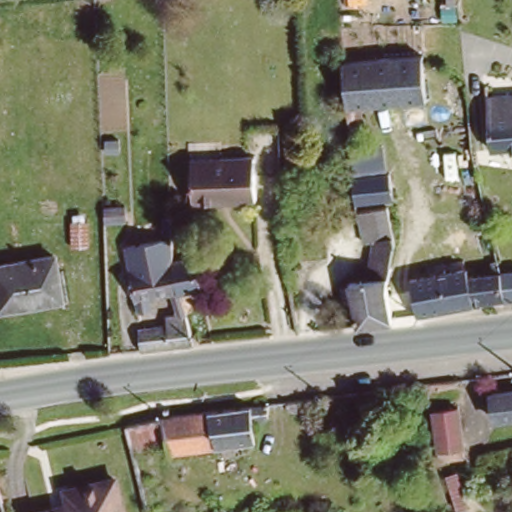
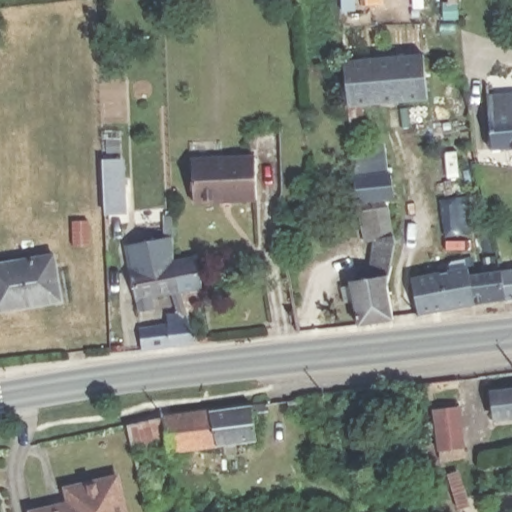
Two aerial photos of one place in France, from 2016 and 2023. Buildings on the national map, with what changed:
unchanged [(347,62),(416,53),(418,53),(420,72),(423,97),(358,105),(359,115),(345,117),(345,112),(339,63),(347,62)]
unchanged [(512,99),(512,147),(491,147),(487,100),(512,99)]
unchanged [(250,157),(253,179),(255,201),(195,206),(192,162),(239,158),(250,157)]
unchanged [(384,170),(387,194),(350,199),(348,187),(347,175),(384,170)]
unchanged [(342,277),(352,276),(352,269),(364,268),(371,238),(362,239),(357,207),(358,207),(382,203),(387,236),(378,274),(382,314),(347,320),(344,300),(332,301),(330,284),(342,283),(342,277)]
unchanged [(199,291),(177,294),(147,298),(147,307),(133,308),(130,274),(127,245),(173,242),(174,265),(196,259),(199,291)]
unchanged [(51,250),(55,271),(59,295),(0,306),(0,260),(51,250)]
unchanged [(470,274),(475,274),(475,268),(483,267),(483,273),(500,271),(512,270),(512,294),(505,294),(417,310),(411,275),(468,264),(470,274)]
unchanged [(168,326),(167,315),(186,312),(190,343),(142,348),(140,330),(168,326)]
unchanged [(512,404),(492,406),(490,384),(512,382),(512,404)]
unchanged [(258,440),(128,456),(121,420),(252,403),(258,440)]
unchanged [(452,403),(453,409),(459,446),(436,450),(427,407),(452,403)]
unchanged [(65,493),(111,482),(117,512),(61,512),(69,510),(65,493)]

